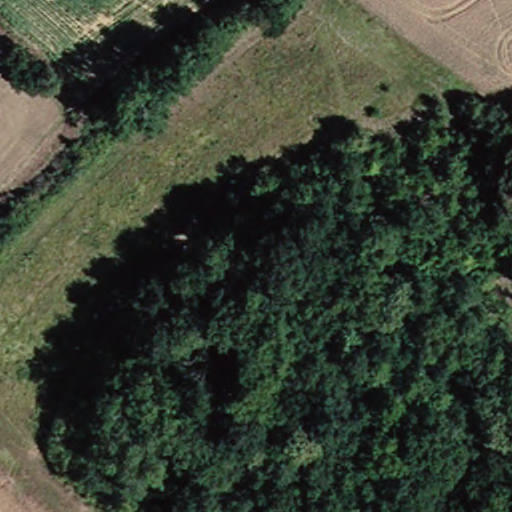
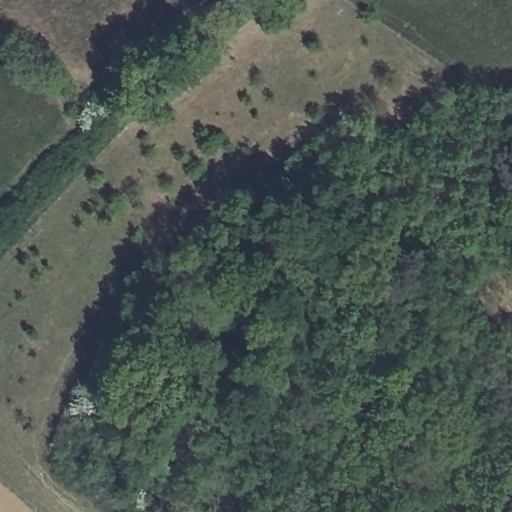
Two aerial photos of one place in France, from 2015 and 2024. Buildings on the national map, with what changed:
unchanged [(512,125),(512,136),(507,132),(512,125)]

